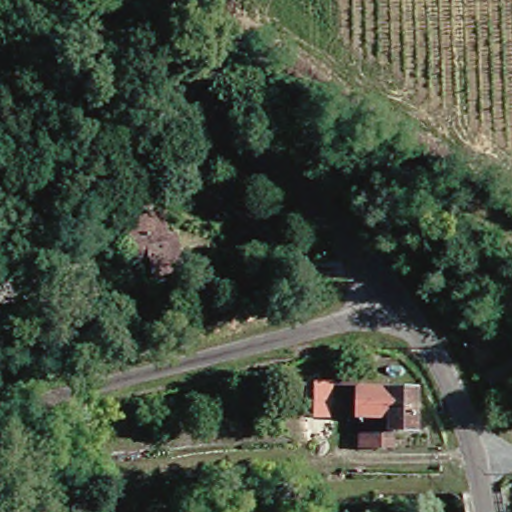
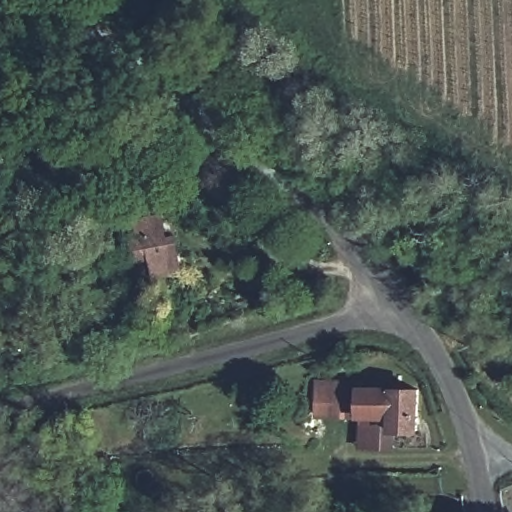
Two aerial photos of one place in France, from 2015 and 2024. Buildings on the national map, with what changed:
unchanged [(137,203),(126,218),(115,209),(127,194),(137,203)]
unchanged [(157,259),(136,264),(129,226),(150,222),(157,259)]
unchanged [(376,438),(376,420),(337,419),(337,390),(412,391),(411,430),(392,430),(392,438),(376,438)]

